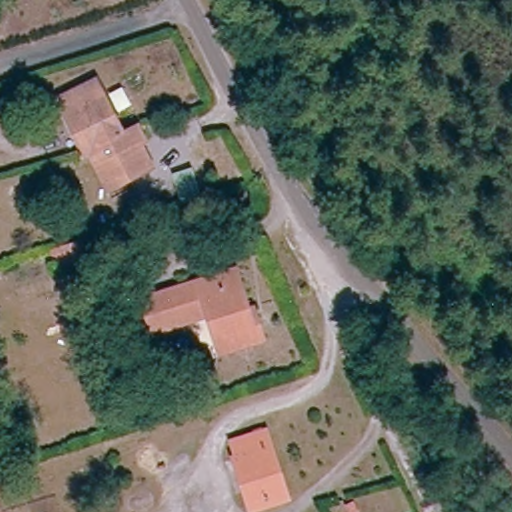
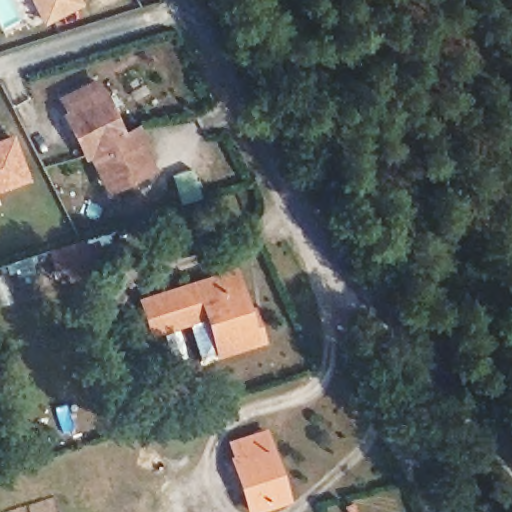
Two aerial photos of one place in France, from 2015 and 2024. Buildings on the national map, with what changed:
new [(43,26),(30,0),(82,0),(84,5),(43,26)]
unchanged [(100,189),(85,161),(79,164),(67,143),(57,123),(65,119),(55,100),(95,81),(122,133),(136,126),(145,144),(140,148),(152,172),(126,185),(103,196),(100,189)]
new [(15,131),(32,180),(0,192),(0,137),(15,131)]
unchanged [(82,284),(57,292),(52,279),(40,284),(34,259),(71,247),(82,284)]
unchanged [(267,344),(254,349),(217,360),(203,319),(154,335),(143,306),(200,289),(237,276),(242,289),(251,319),(257,317),(267,344)]
unchanged [(262,436),(283,503),(250,512),(247,512),(229,462),(235,460),(231,446),(262,436)]

